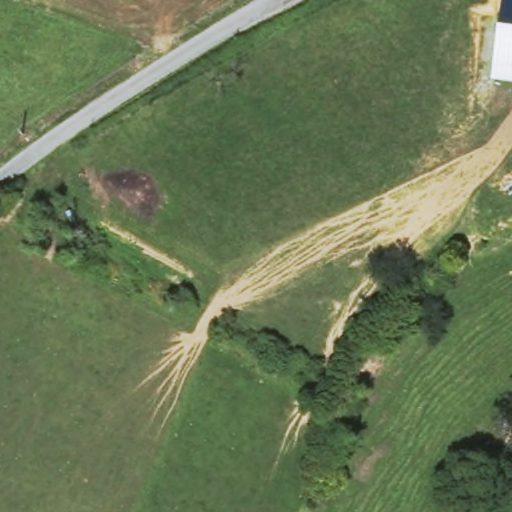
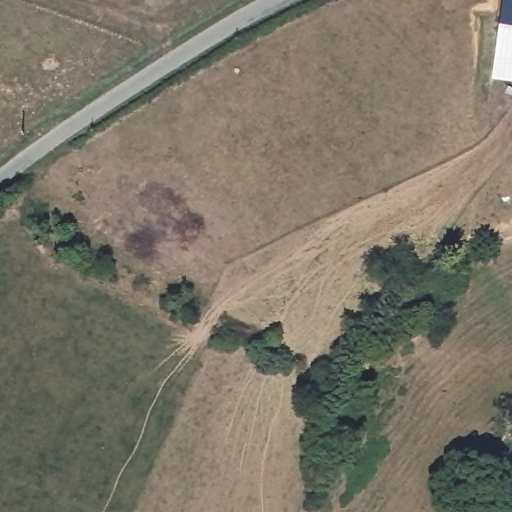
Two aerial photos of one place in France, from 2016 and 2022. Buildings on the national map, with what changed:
unchanged [(491,81),(503,0),(512,0),(512,84),(491,81)]

